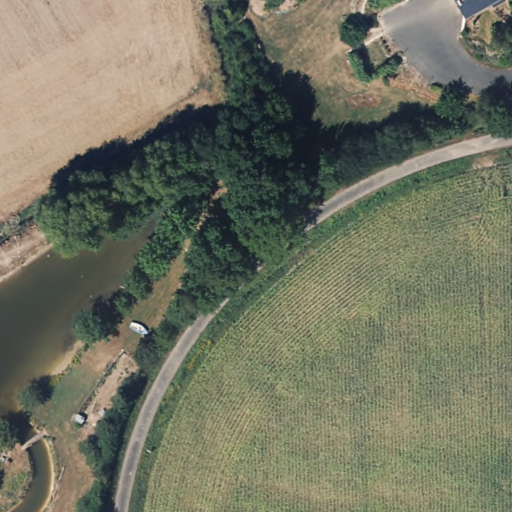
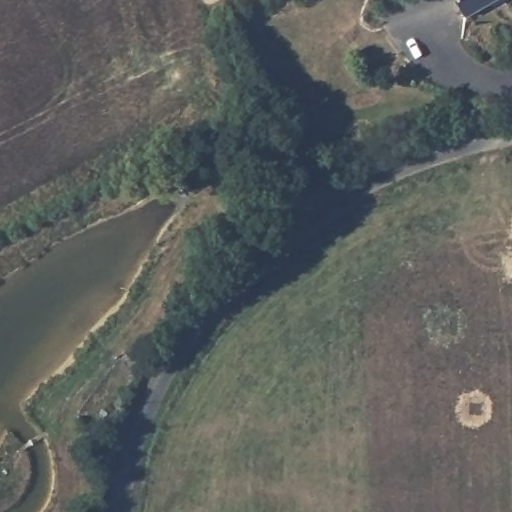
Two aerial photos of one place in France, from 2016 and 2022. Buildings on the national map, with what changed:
unchanged [(459,0),(490,0),(467,13),(459,0)]

